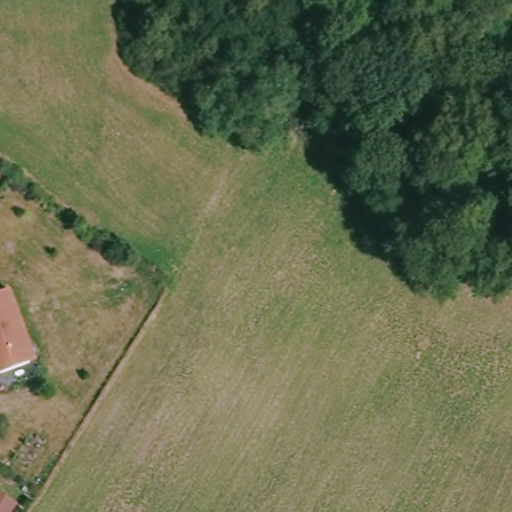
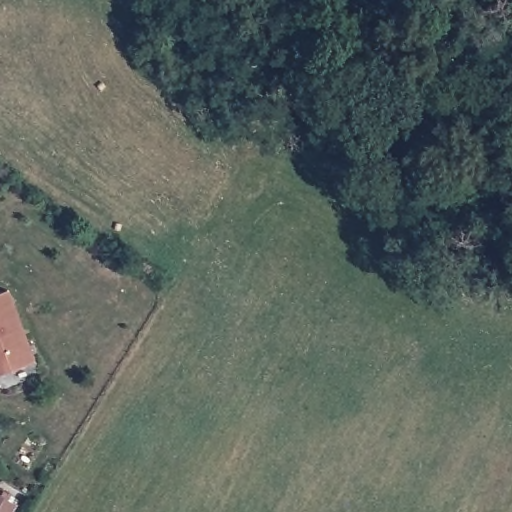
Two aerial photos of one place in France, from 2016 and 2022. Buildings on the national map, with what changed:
unchanged [(8,290),(32,343),(27,345),(34,361),(5,374),(0,372),(0,293),(8,290)]
unchanged [(17,501),(10,512),(0,512),(0,491),(17,501)]

